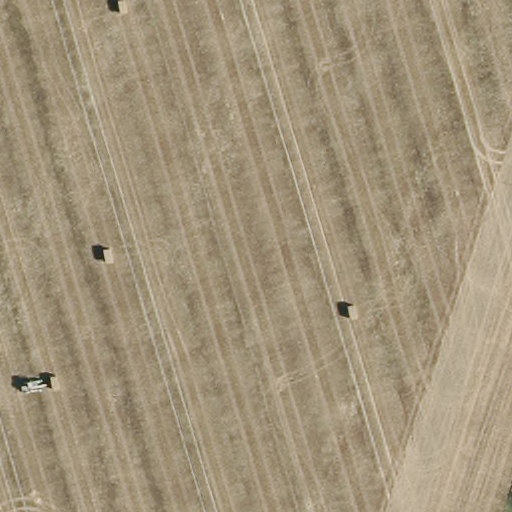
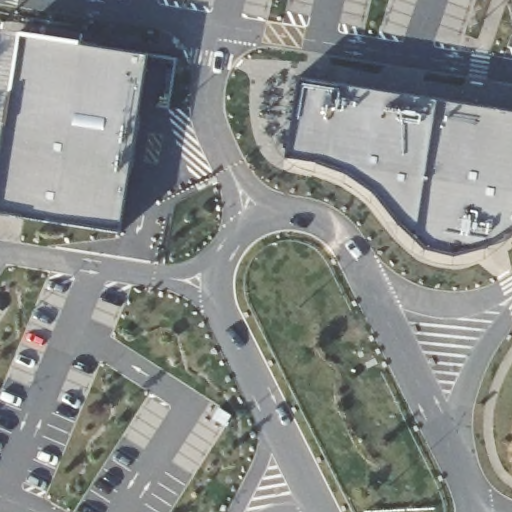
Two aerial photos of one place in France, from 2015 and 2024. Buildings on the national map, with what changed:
new [(145,68),(118,229),(0,209),(0,175),(23,45),(145,68)]
new [(512,227),(485,244),(455,253),(422,244),(353,175),(287,160),(300,84),(512,117),(512,227)]

